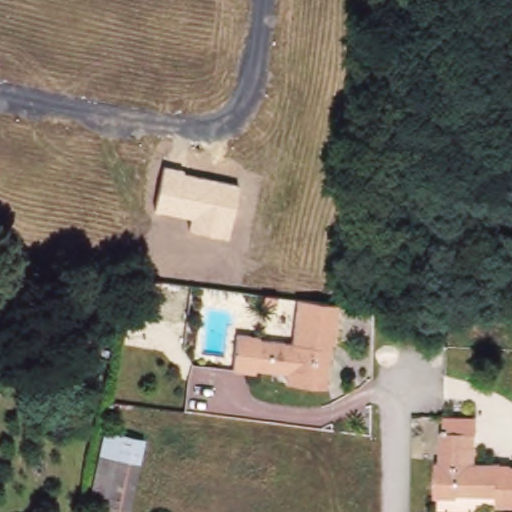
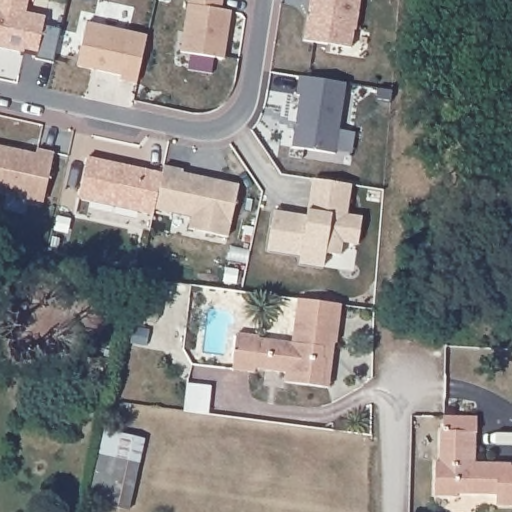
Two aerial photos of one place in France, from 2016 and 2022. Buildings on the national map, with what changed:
new [(27,12),(45,17),(43,25),(59,29),(53,63),(35,60),(35,56),(0,48),(0,0),(29,0),(27,12)]
new [(188,0),(223,0),(221,9),(231,11),(223,59),(180,52),(188,0)]
new [(303,40),(310,0),(359,0),(352,48),(303,40)]
new [(86,22),(147,35),(137,84),(119,80),(120,76),(77,66),(86,22)]
new [(300,96),(296,95),(299,76),(346,83),(335,153),(292,147),(300,96)]
new [(37,149),(54,153),(43,203),(0,194),(0,146),(36,154),(37,149)]
new [(152,216),(78,199),(86,156),(162,172),(154,210),(152,216)]
unchanged [(163,166),(184,169),(183,174),(237,185),(228,238),(188,230),(191,217),(154,210),(163,166)]
new [(272,210),(305,214),(306,209),(311,178),(352,185),(348,214),(362,216),(358,244),(348,242),(345,257),(325,253),(323,266),(298,262),(298,255),(266,250),(272,210)]
unchanged [(159,300),(158,319),(134,316),(136,298),(159,300)]
unchanged [(322,388),(283,384),(284,373),(267,371),(273,340),(292,342),(297,298),(341,303),(336,342),(334,344),(329,389),(322,388)]
unchanged [(255,369),(255,372),(233,369),(238,333),(259,335),(259,338),(273,340),(267,371),(255,369)]
unchanged [(497,505),(498,493),(458,493),(457,496),(434,495),(434,461),(438,461),(439,430),(474,431),(474,460),(500,461),(510,461),(510,465),(512,465),(512,505),(497,505)]
unchanged [(138,438),(133,463),(94,455),(99,431),(138,438)]
unchanged [(133,463),(123,509),(84,500),(94,455),(133,463)]

